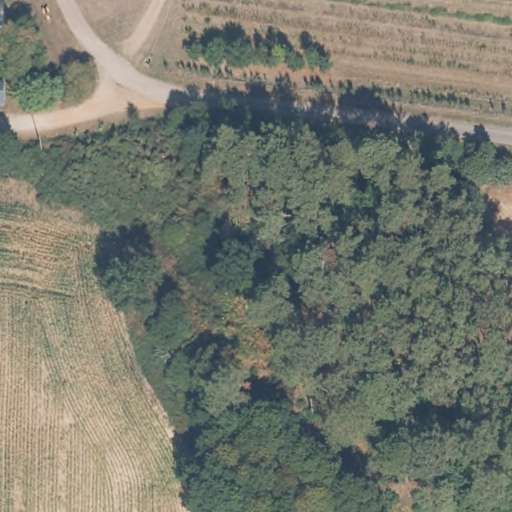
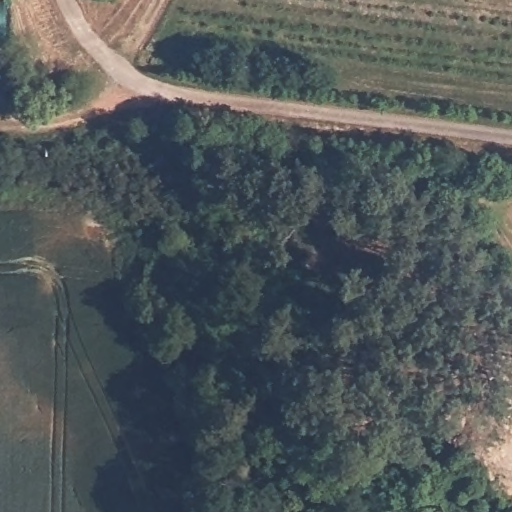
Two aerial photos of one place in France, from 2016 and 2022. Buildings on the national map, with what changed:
unchanged [(6,3),(6,38),(0,38),(0,3),(6,3)]

